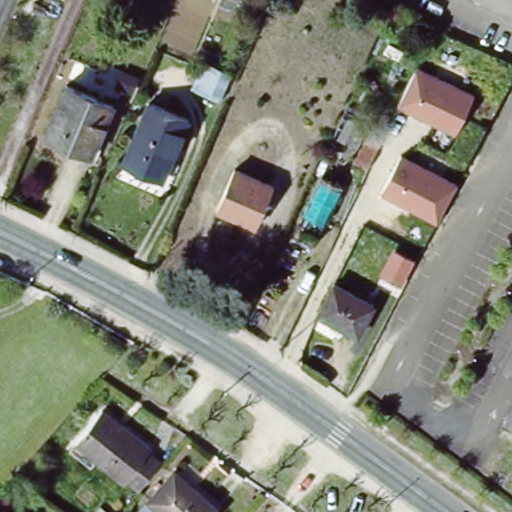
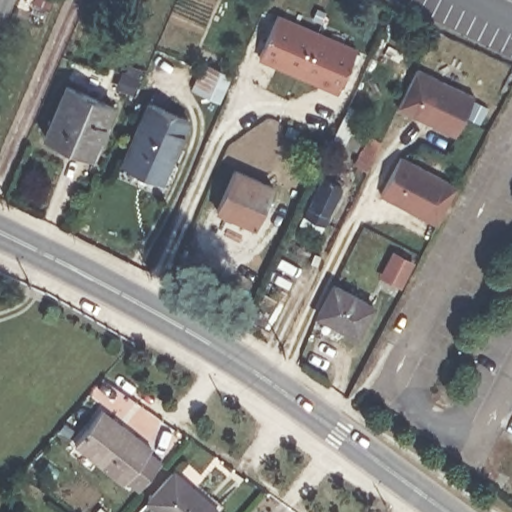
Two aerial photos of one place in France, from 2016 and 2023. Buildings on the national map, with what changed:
new [(279,13),(357,46),(337,92),(259,58),(279,13)]
unchanged [(400,109),(418,69),(475,95),(456,135),(400,109)]
unchanged [(99,140),(94,151),(50,132),(71,86),(114,106),(99,140)]
unchanged [(187,122),(172,157),(160,151),(149,176),(121,164),(148,105),(187,122)]
demolished [(375,159),(359,150),(365,137),(381,146),(375,159)]
unchanged [(381,194),(402,154),(459,184),(438,222),(381,194)]
unchanged [(219,209),(238,167),(278,184),(261,227),(219,209)]
unchanged [(322,228),(300,217),(319,179),(342,190),(322,228)]
unchanged [(417,261),(401,287),(378,276),(392,249),(417,261)]
demolished [(339,277),(347,260),(359,267),(351,283),(339,277)]
unchanged [(360,335),(321,315),(337,283),(376,303),(360,335)]
unchanged [(117,437),(120,433),(152,453),(149,459),(159,465),(140,493),(75,451),(94,422),(117,437)]
unchanged [(219,512),(159,512),(147,502),(174,473),(220,511),(219,512)]

